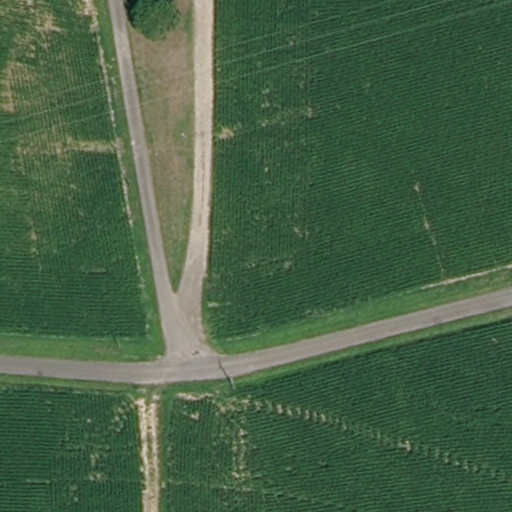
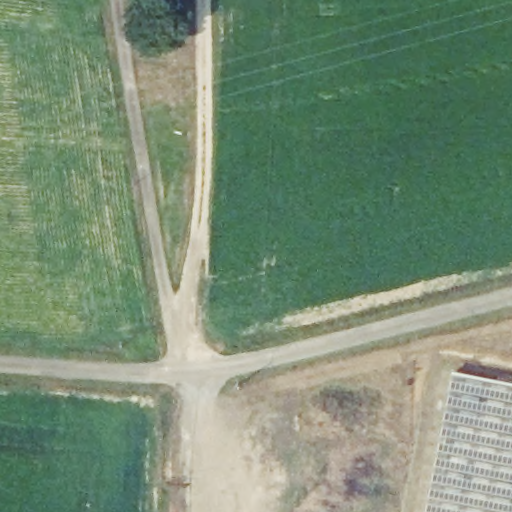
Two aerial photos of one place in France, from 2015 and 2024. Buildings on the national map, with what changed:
new [(423,512),(450,374),(512,386),(512,512),(423,512)]

